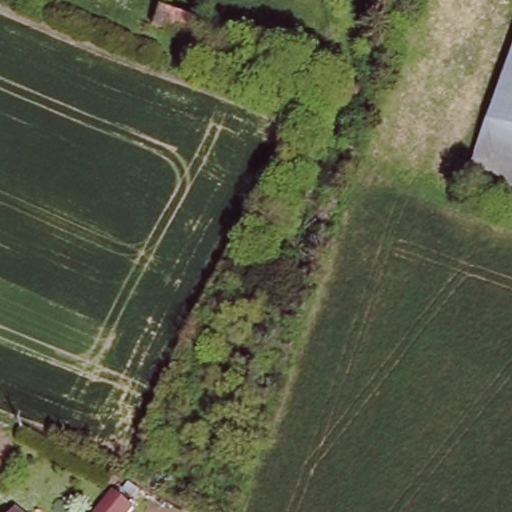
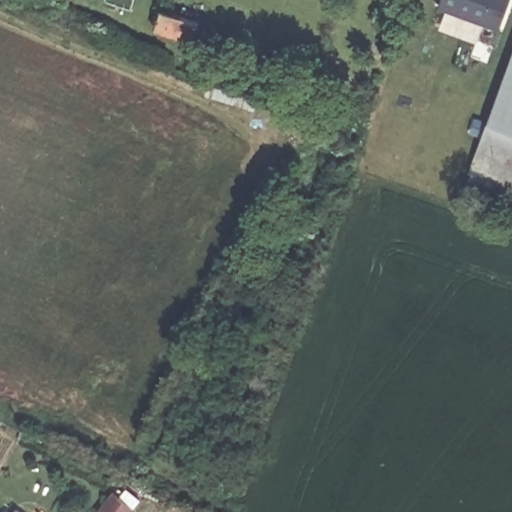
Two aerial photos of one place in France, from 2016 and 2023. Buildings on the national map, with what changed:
new [(439,9),(442,0),(511,0),(499,30),(439,9)]
unchanged [(163,25),(169,7),(206,21),(199,39),(163,25)]
unchanged [(489,125),(488,125),(512,62),(512,134),(489,125)]
unchanged [(489,125),(512,134),(512,204),(508,202),(471,182),(488,125),(489,125)]
unchanged [(133,508),(129,512),(96,512),(112,492),(133,508)]
unchanged [(18,511),(19,512),(17,512),(18,511)]

